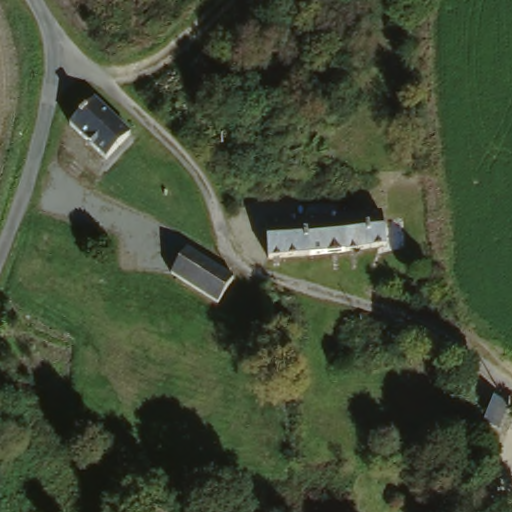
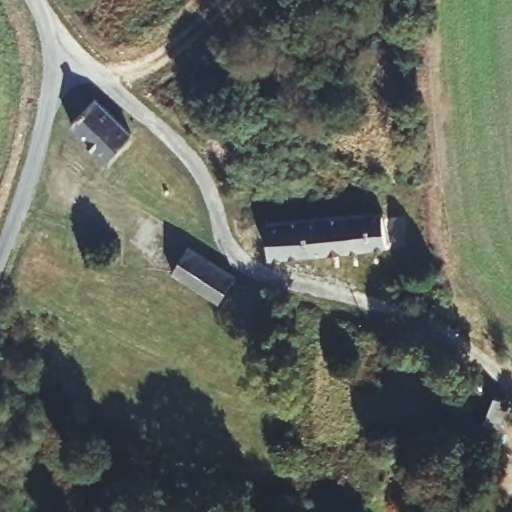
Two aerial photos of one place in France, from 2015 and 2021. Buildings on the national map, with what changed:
unchanged [(67,126),(82,110),(90,100),(124,130),(125,131),(103,156),(67,126)]
unchanged [(350,255),(347,220),(391,217),(393,252),(350,255)]
unchanged [(269,225),(297,223),(347,220),(350,255),(272,259),(269,225)]
unchanged [(212,304),(173,279),(190,252),(224,273),(232,277),(216,299),(212,304)]
unchanged [(503,405),(512,409),(512,414),(504,435),(492,430),(503,405)]

